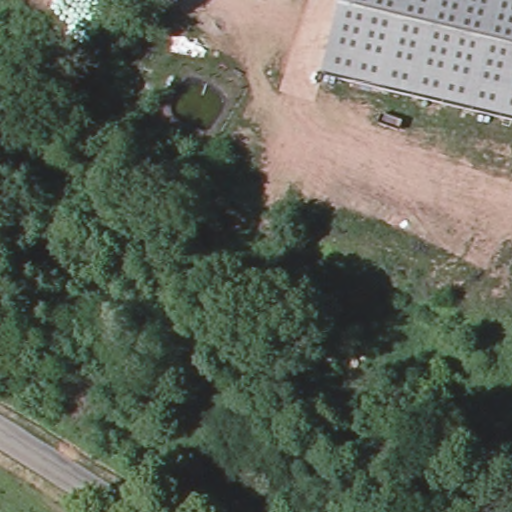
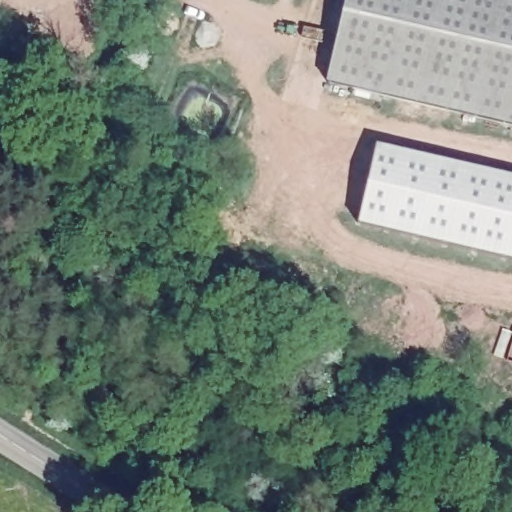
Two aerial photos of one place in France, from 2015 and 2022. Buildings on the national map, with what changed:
unchanged [(512,127),(460,113),(323,76),(343,0),(512,0),(512,127)]
new [(376,145),(512,177),(512,261),(357,225),(376,145)]

